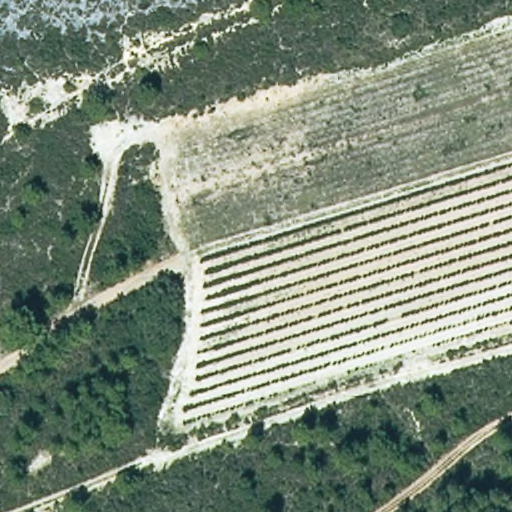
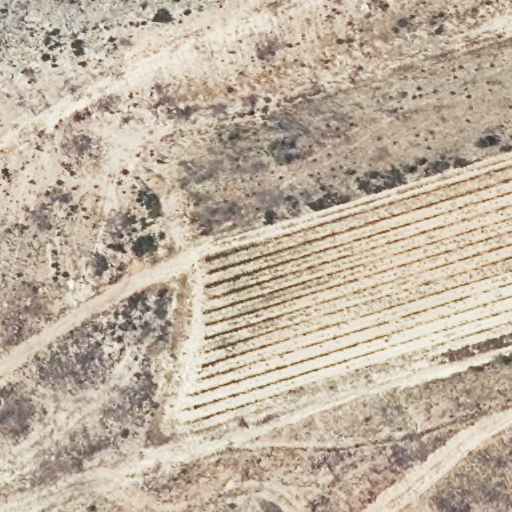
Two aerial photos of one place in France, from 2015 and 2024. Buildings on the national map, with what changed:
[]

